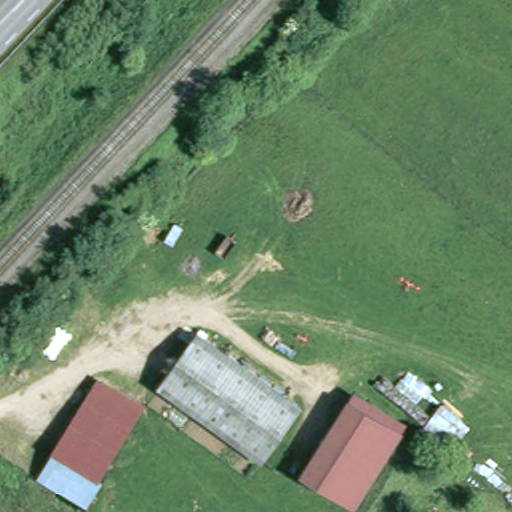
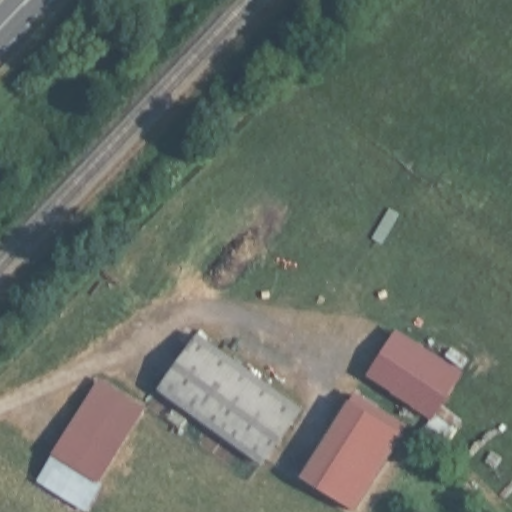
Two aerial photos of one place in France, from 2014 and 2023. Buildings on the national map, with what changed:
new [(463,371),(432,418),(367,374),(397,327),(463,371)]
unchanged [(300,422),(258,472),(161,392),(205,341),(300,422)]
unchanged [(43,486),(98,390),(143,418),(89,512),(85,512),(43,486)]
unchanged [(350,397),(405,433),(360,512),(359,512),(301,474),(350,397)]

